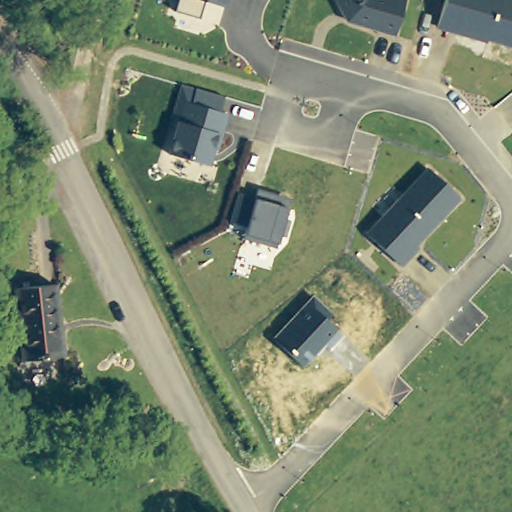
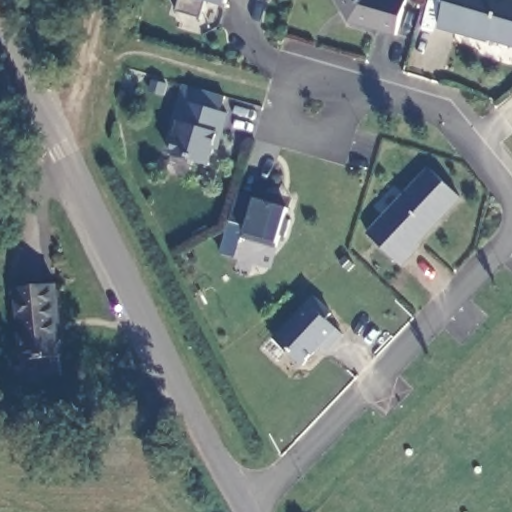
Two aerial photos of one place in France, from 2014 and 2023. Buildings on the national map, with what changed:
unchanged [(224,8),(205,1),(200,18),(173,11),(176,0),(227,0),(224,8)]
unchanged [(395,37),(347,23),(334,0),(406,0),(395,37)]
unchanged [(487,41),(486,43),(437,29),(445,0),(512,0),(512,48),(487,41)]
unchanged [(167,153),(176,121),(170,119),(180,84),(225,96),(220,111),(227,113),(217,151),(214,150),(209,165),(167,153)]
unchanged [(417,246),(419,248),(402,267),(365,233),(426,166),(461,199),(417,246)]
unchanged [(285,218),(290,220),(285,237),(280,236),(276,248),(242,239),(245,226),(228,222),(237,192),(254,196),(256,189),(291,198),(285,218)]
unchanged [(59,352),(20,354),(14,281),(54,279),(59,352)]
unchanged [(330,351),(323,344),(302,366),(270,338),(312,294),(332,313),(327,319),(344,335),(330,351)]

